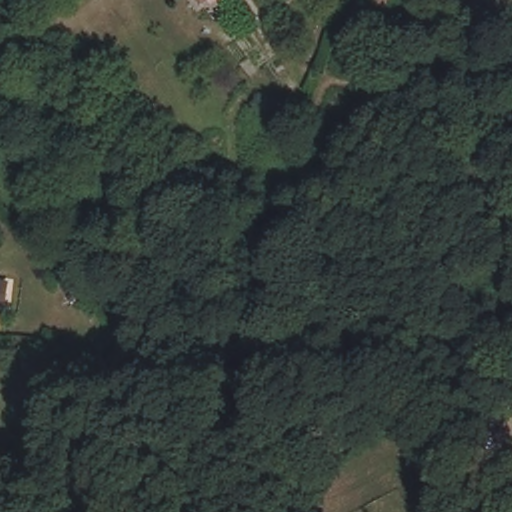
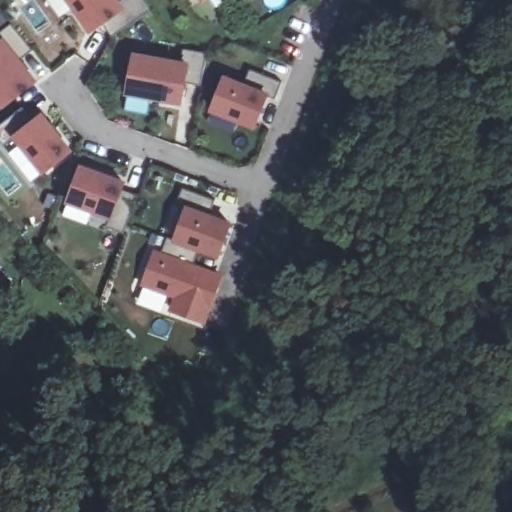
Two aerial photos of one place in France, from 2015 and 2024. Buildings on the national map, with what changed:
new [(72,7),(60,17),(47,0),(119,0),(125,9),(90,32),(72,7)]
new [(12,24),(32,50),(21,59),(38,80),(4,109),(0,103),(0,41),(4,38),(0,34),(12,24)]
new [(127,95),(135,54),(181,61),(184,50),(207,54),(201,85),(186,84),(182,105),(127,95)]
new [(254,130),(210,112),(225,77),(246,84),(250,70),(280,81),(275,97),(269,95),(254,130)]
new [(0,140),(0,126),(22,107),(34,121),(42,111),(74,151),(44,175),(15,139),(6,145),(0,140)]
new [(111,219),(67,203),(82,164),(126,181),(124,190),(137,195),(124,233),(108,226),(111,219)]
new [(155,250),(163,253),(169,239),(175,241),(187,209),(177,205),(184,188),(215,201),(210,215),(232,224),(219,259),(197,250),(192,264),(224,274),(205,324),(170,310),(174,297),(141,285),(155,250)]
unchanged [(2,298),(0,298),(0,278),(5,278),(2,298)]

